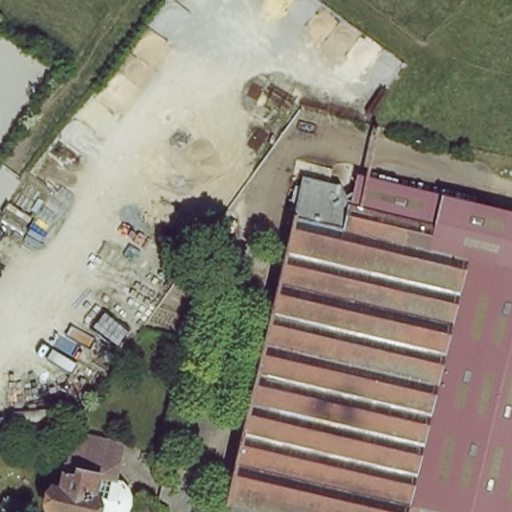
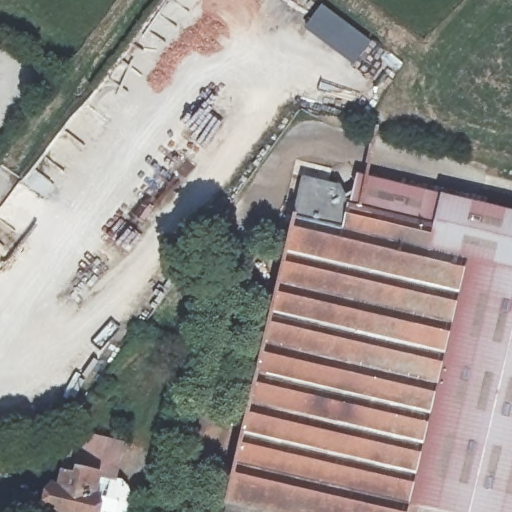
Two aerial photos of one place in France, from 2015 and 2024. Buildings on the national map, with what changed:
new [(321,4),(371,41),(353,65),(304,27),(321,4)]
unchanged [(423,510),(423,512),(270,512),(228,501),(248,416),(271,322),(295,219),(304,181),(340,190),(352,208),(359,179),(383,184),(490,210),(512,215),(512,512),(432,512),(423,510)]
unchanged [(86,452),(89,442),(127,451),(120,483),(128,485),(132,496),(135,509),(132,512),(49,512),(54,489),(61,490),(66,470),(69,467),(73,450),(86,452)]

